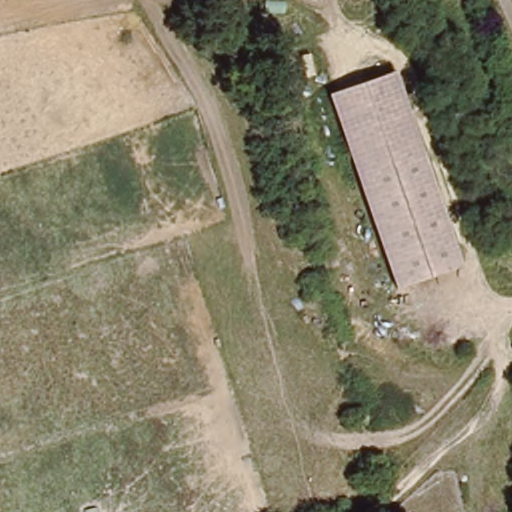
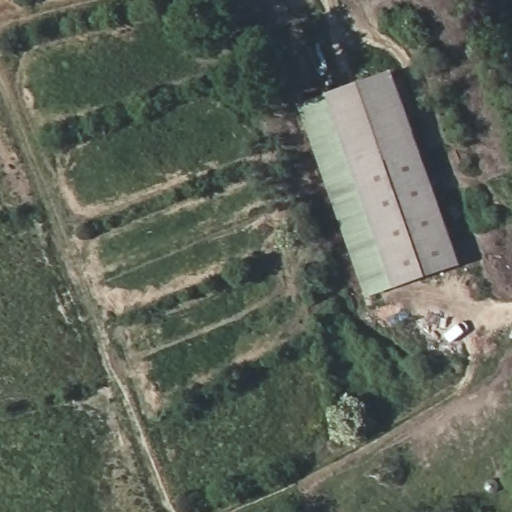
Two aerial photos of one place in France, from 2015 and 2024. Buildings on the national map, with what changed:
unchanged [(327,91),(392,69),(463,266),(396,287),(327,91)]
new [(302,102),(327,91),(396,287),(368,297),(302,102)]

